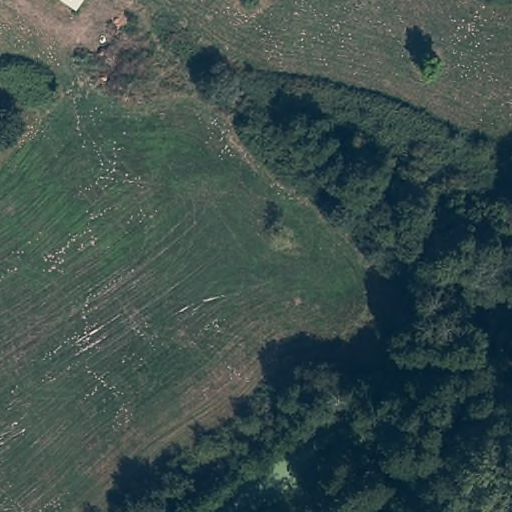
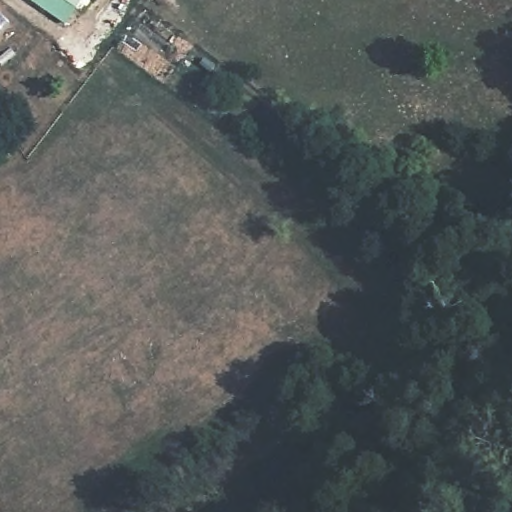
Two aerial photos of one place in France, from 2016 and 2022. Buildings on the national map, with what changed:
unchanged [(56,0),(95,0),(82,18),(56,0)]

